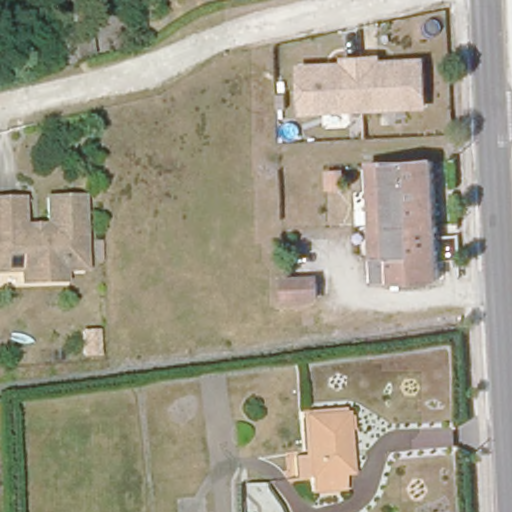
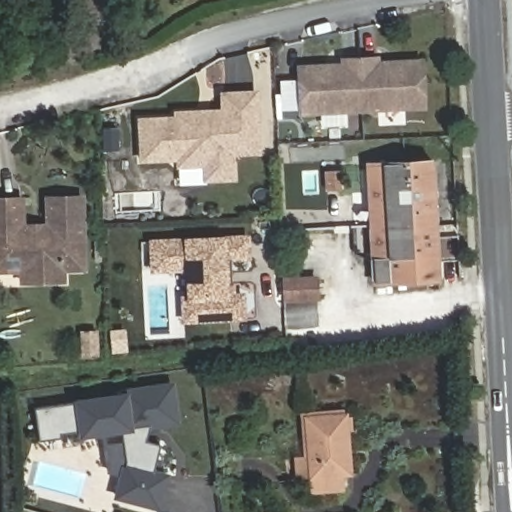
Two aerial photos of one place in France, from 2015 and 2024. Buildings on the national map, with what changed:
unchanged [(72,0),(85,0),(92,53),(82,54),(79,55),(72,0)]
unchanged [(344,66),(344,60),(361,59),(377,58),(377,63),(422,61),(424,107),(363,110),(302,113),(300,68),(344,66)]
new [(238,180),(204,182),(202,167),(176,169),(175,160),(141,162),(137,116),(174,114),(174,110),(222,107),(221,90),(259,89),(262,155),(236,155),(238,180)]
unchanged [(359,164),(423,161),(430,279),(365,282),(359,164)]
unchanged [(22,193),(23,220),(49,220),(48,192),(82,191),(85,263),(64,263),(64,274),(22,275),(22,264),(2,265),(0,265),(0,194),(22,193)]
new [(248,257),(225,258),(230,258),(232,283),(232,295),(242,294),(244,317),(184,320),(183,297),(189,297),(188,272),(181,268),(153,270),(152,241),(247,237),(248,257)]
unchanged [(276,279),(307,278),(307,298),(277,299),(276,279)]
new [(170,474),(161,509),(115,497),(121,475),(106,472),(104,444),(124,441),(123,431),(82,437),(82,430),(61,432),(61,437),(41,440),(37,408),(76,403),(76,401),(127,392),(127,388),(174,382),(181,423),(150,428),(146,442),(160,446),(154,470),(170,474)]
unchanged [(347,414),(348,429),(343,429),(347,474),(342,475),(343,489),(312,492),(311,477),(296,478),(294,457),(309,455),(306,417),(347,414)]

